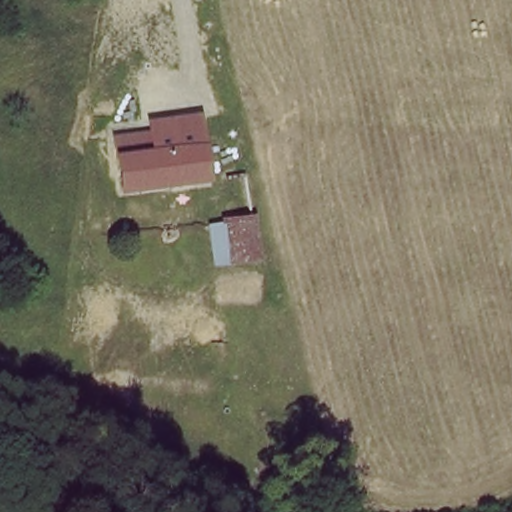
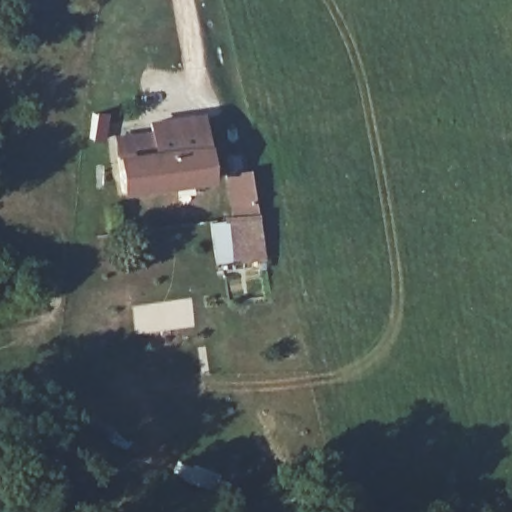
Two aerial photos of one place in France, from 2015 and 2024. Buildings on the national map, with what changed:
unchanged [(207,154),(206,191),(121,187),(122,158),(158,158),(158,126),(198,126),(207,154)]
unchanged [(236,265),(219,266),(212,224),(230,223),(229,217),(258,214),(266,263),(236,265)]

